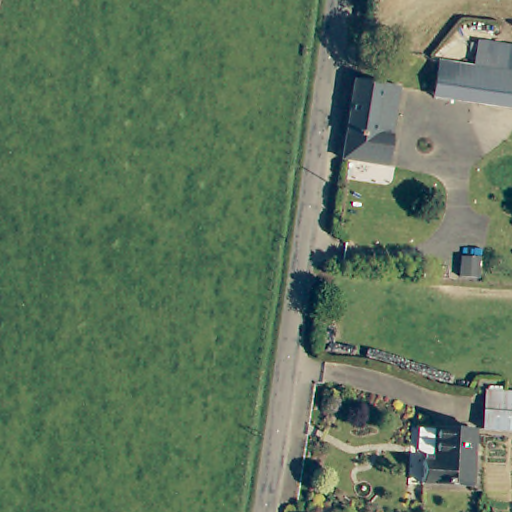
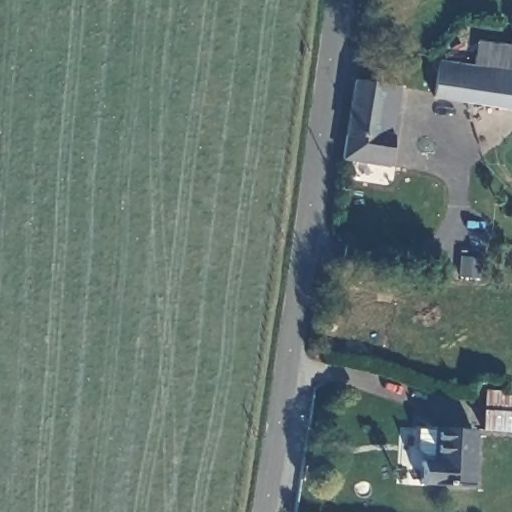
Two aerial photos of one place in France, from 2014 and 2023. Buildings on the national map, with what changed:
unchanged [(488,106),(428,100),(433,64),(472,69),(474,43),(507,46),(504,73),(512,74),(512,108),(488,106)]
unchanged [(343,156),(346,135),(354,80),(398,85),(391,141),(393,141),(390,162),(378,161),(378,158),(343,156)]
unchanged [(512,392),(512,425),(482,423),(484,390),(512,392)]
unchanged [(471,433),(468,488),(417,484),(418,470),(421,470),(422,459),(416,459),(418,429),(471,433)]

